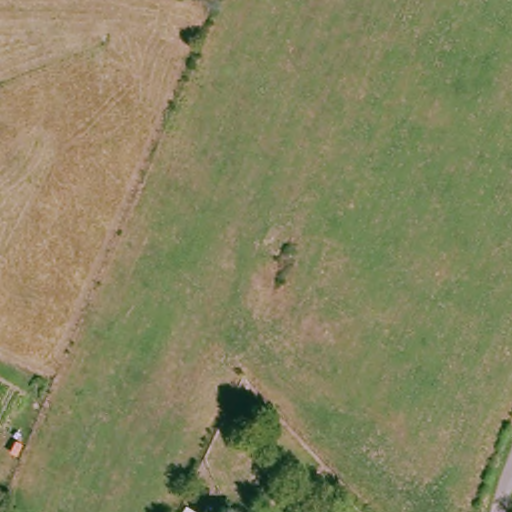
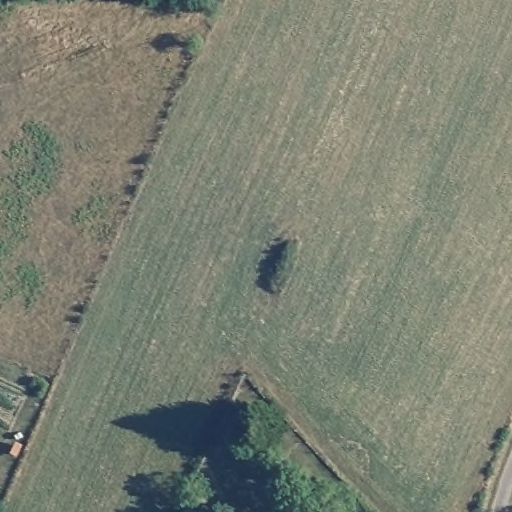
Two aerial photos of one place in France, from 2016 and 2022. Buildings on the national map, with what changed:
unchanged [(189,512),(190,511),(191,512),(189,512)]

